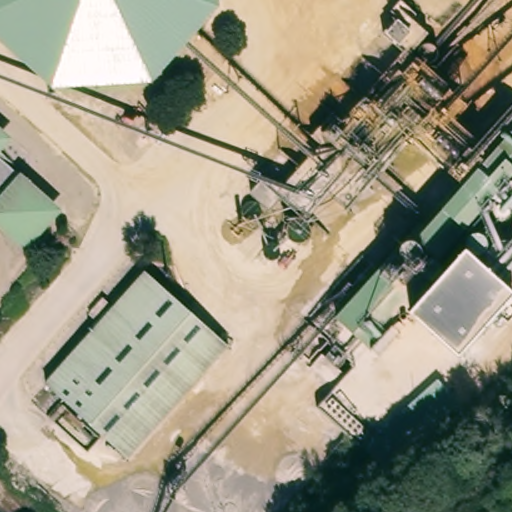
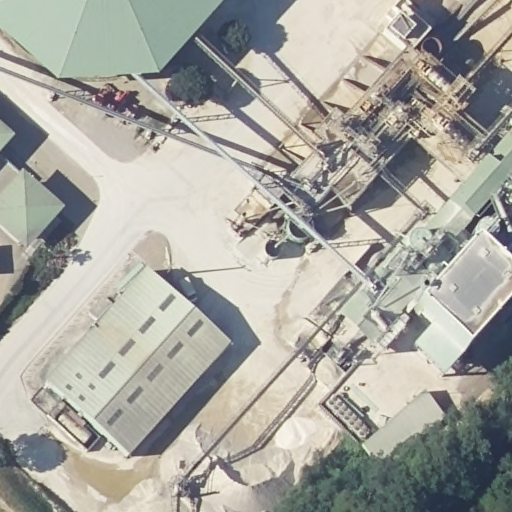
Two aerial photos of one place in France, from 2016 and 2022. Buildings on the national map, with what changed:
unchanged [(0,43),(0,0),(220,0),(221,7),(151,82),(52,87),(0,43)]
unchanged [(448,205),(466,185),(453,171),(456,166),(418,132),(351,205),(331,192),(309,215),(298,231),(286,221),(297,204),(287,196),(275,208),(253,189),(268,172),(287,183),(324,144),(317,134),(343,112),(350,117),(407,52),(404,43),(391,28),(399,19),(398,11),(397,6),(402,1),(411,4),(417,9),(417,16),(430,28),(425,35),(428,39),(436,47),(435,59),(431,68),(464,94),(448,113),(489,147),(506,130),(512,136),(512,310),(466,357),(413,308),(376,342),(341,313),(405,242),(409,240),(416,238),(418,240),(421,240),(448,205)]
unchanged [(0,156),(0,115),(20,133),(0,156)]
unchanged [(73,209),(33,254),(0,226),(0,203),(28,172),(73,209)]
unchanged [(148,269),(235,348),(135,460),(48,382),(148,269)]

